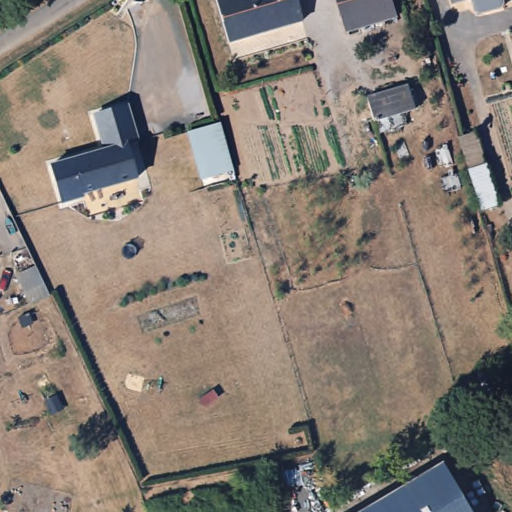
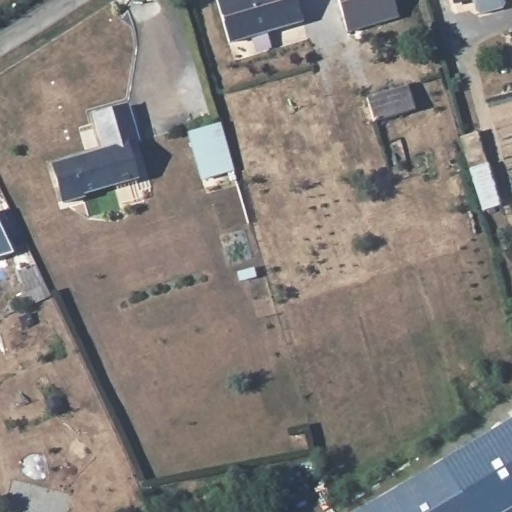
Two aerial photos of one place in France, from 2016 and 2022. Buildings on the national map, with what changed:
unchanged [(303,18),(229,39),(218,0),(298,0),(303,18)]
unchanged [(394,17),(344,33),(334,0),(389,0),(394,17)]
unchanged [(456,1),(456,0),(460,0),(456,1)]
unchanged [(486,12),(479,10),(477,0),(508,0),(508,1),(505,6),(486,12)]
unchanged [(406,87),(413,112),(371,124),(363,98),(406,87)]
unchanged [(127,107),(138,143),(127,147),(136,180),(82,196),(82,199),(63,205),(52,167),(104,151),(95,117),(127,107)]
new [(220,124),(234,170),(203,180),(189,133),(220,124)]
new [(512,507),(504,512),(473,512),(441,459),(512,417),(512,507)]
unchanged [(473,512),(354,512),(441,459),(473,512)]

